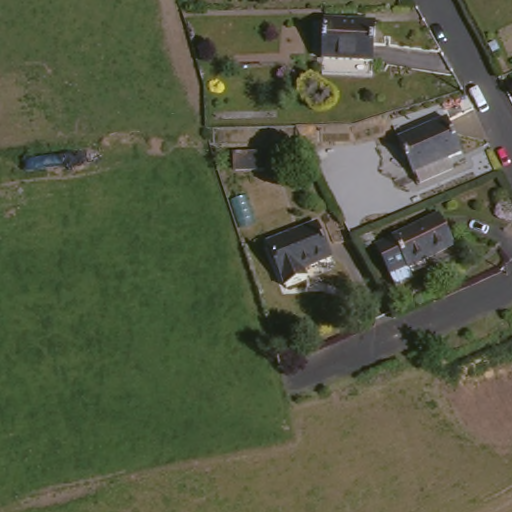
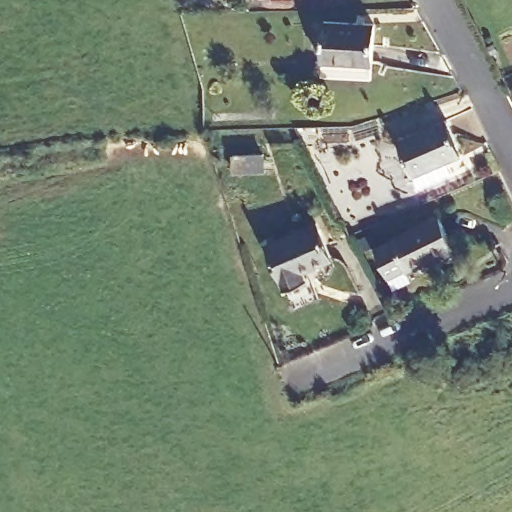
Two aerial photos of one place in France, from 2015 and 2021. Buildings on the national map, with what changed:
unchanged [(366,26),(366,62),(321,62),(321,24),(366,26)]
unchanged [(436,117),(454,164),(413,181),(394,134),(436,117)]
unchanged [(261,165),(262,182),(231,183),(231,166),(261,165)]
unchanged [(394,289),(389,278),(374,250),(434,223),(446,249),(406,270),(411,281),(394,289)]
unchanged [(325,270),(296,282),(303,297),(283,306),(261,254),(309,233),(325,270)]

